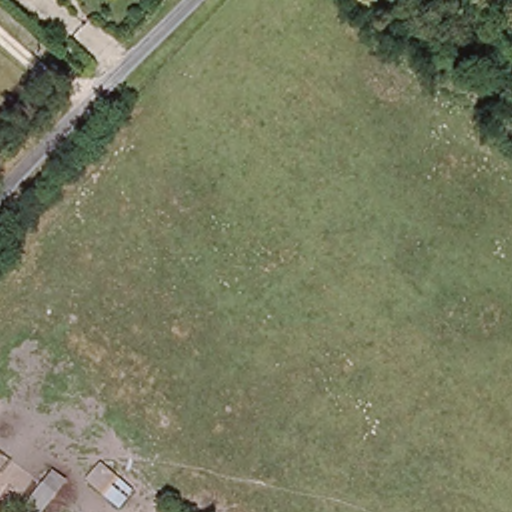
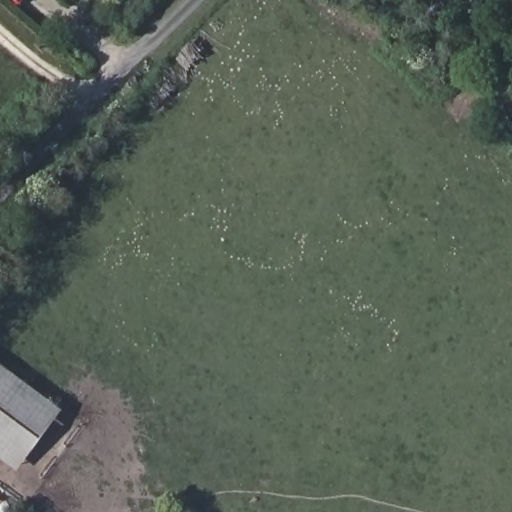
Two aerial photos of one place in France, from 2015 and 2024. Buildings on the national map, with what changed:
new [(19,470),(0,457),(0,361),(64,408),(19,470)]
demolished [(88,482),(103,465),(134,490),(118,507),(88,482)]
demolished [(45,512),(25,512),(24,511),(50,473),(65,482),(45,512)]

